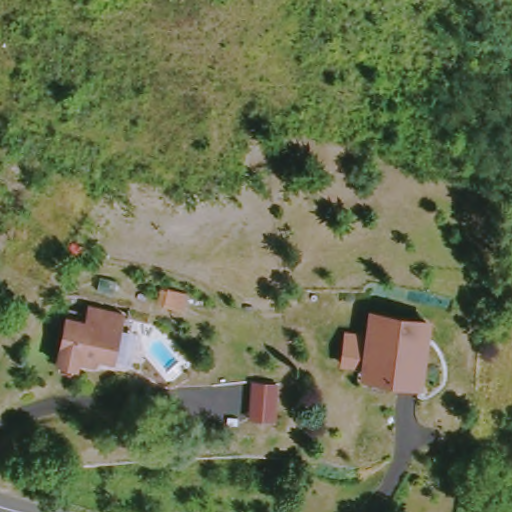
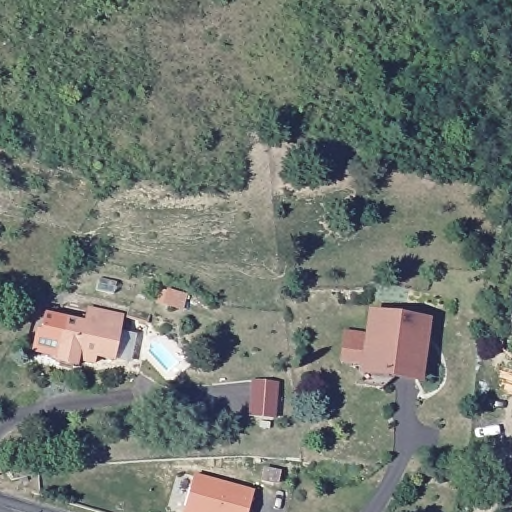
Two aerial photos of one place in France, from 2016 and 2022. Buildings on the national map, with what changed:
unchanged [(162,305),(155,303),(160,287),(167,288),(186,294),(182,311),(162,305)]
unchanged [(154,326),(134,319),(136,310),(157,316),(154,326)]
unchanged [(117,367),(100,363),(97,368),(82,364),(80,371),(60,366),(72,322),(92,326),(96,311),(129,319),(117,367)]
unchanged [(395,382),(380,391),(359,387),(360,378),(367,311),(429,321),(420,385),(395,382)]
unchanged [(252,384),(277,386),(274,421),(249,420),(252,384)]
unchanged [(289,487),(275,483),(279,472),(292,475),(289,487)]
new [(255,491),(249,512),(184,512),(195,474),(255,491)]

